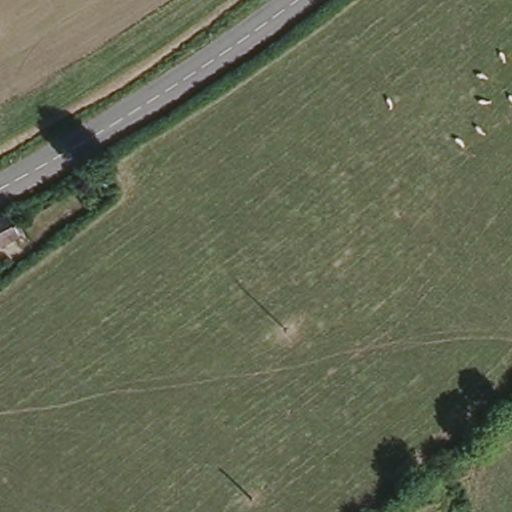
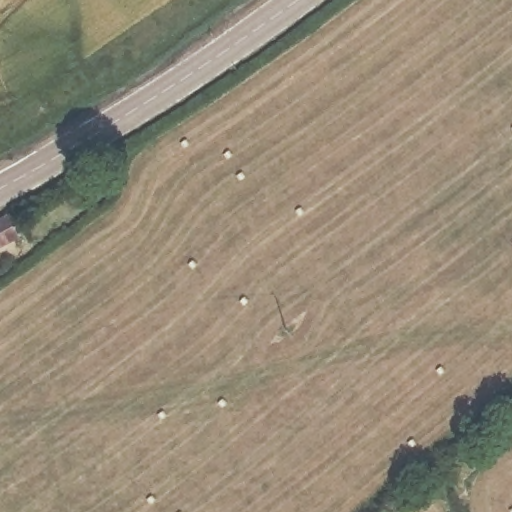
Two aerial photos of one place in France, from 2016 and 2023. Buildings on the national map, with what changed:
unchanged [(0,245),(0,216),(2,215),(15,237),(0,245)]

